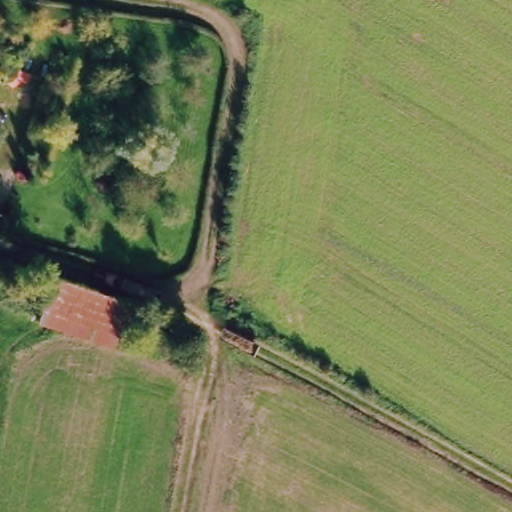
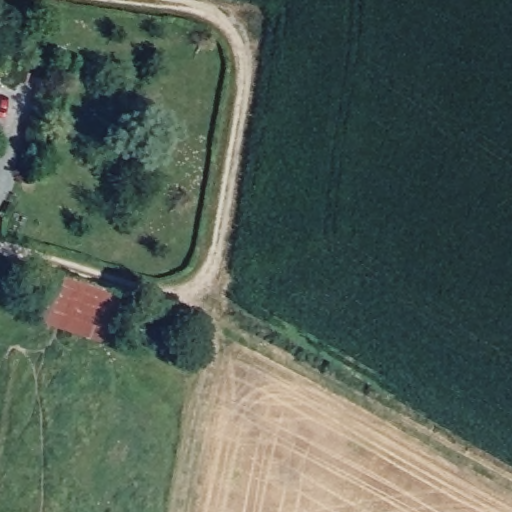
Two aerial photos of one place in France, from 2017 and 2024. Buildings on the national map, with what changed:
unchanged [(34,327),(40,308),(19,301),(28,272),(49,277),(141,308),(126,360),(34,327)]

